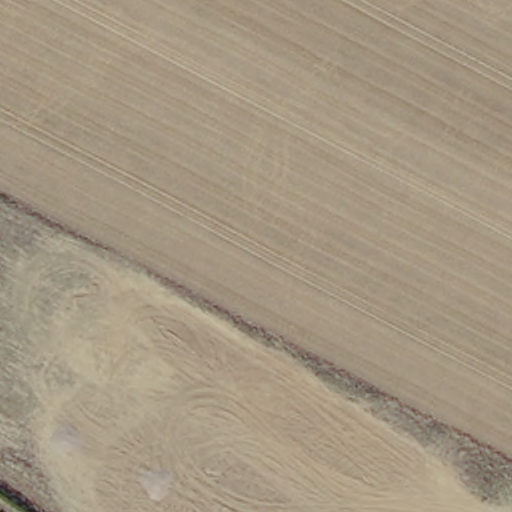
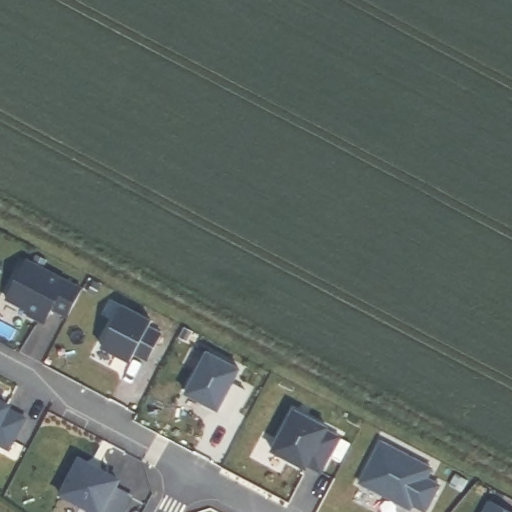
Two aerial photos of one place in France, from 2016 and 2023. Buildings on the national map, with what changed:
new [(82,294),(67,319),(56,312),(50,322),(7,295),(25,260),(82,294)]
new [(120,304),(147,319),(144,325),(158,333),(144,359),(130,353),(125,360),(98,344),(120,304)]
new [(210,345),(246,364),(221,409),(185,389),(210,345)]
new [(3,404),(1,409),(20,417),(4,448),(0,445),(0,403),(3,404)]
new [(293,411),(340,438),(320,477),(271,451),(293,411)]
new [(381,441),(435,467),(429,479),(440,484),(426,510),(412,503),(411,507),(361,482),(381,441)]
new [(76,461),(128,492),(117,512),(86,512),(57,496),(76,461)]
new [(505,512),(483,512),(487,503),(505,512)]

